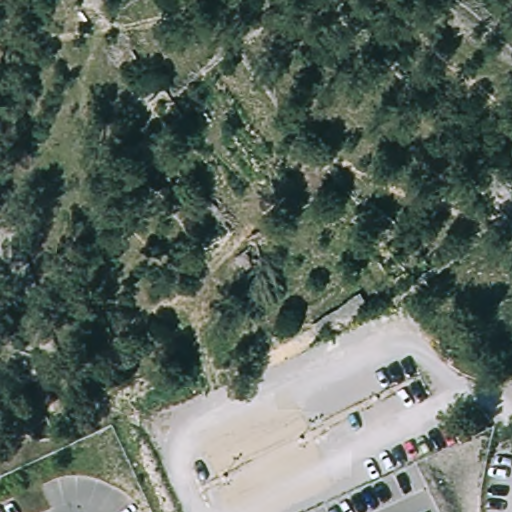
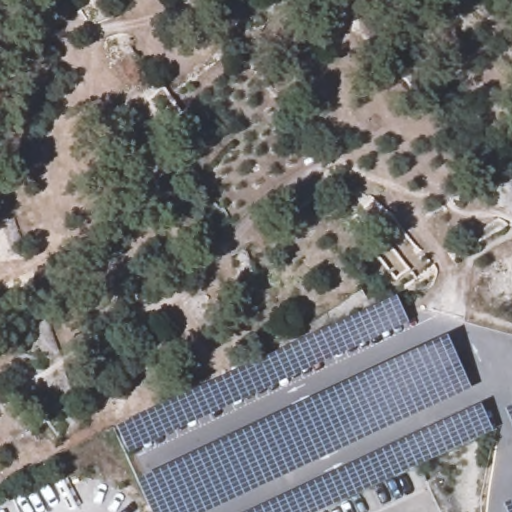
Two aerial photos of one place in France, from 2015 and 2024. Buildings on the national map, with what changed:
new [(126,453),(114,425),(395,296),(407,325),(126,453)]
new [(149,512),(135,480),(445,335),(470,389),(207,512),(149,512)]
new [(492,432),(442,454),(442,451),(437,453),(439,458),(321,512),(248,512),(479,404),(492,432)]
new [(512,405),(512,429),(503,409),(512,405)]
new [(512,499),(512,512),(505,512),(501,504),(512,499)]

